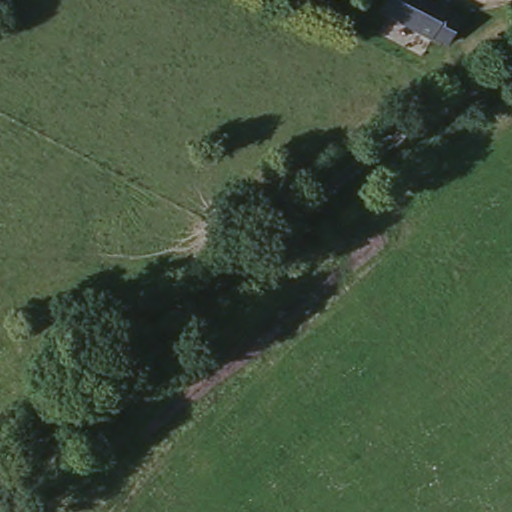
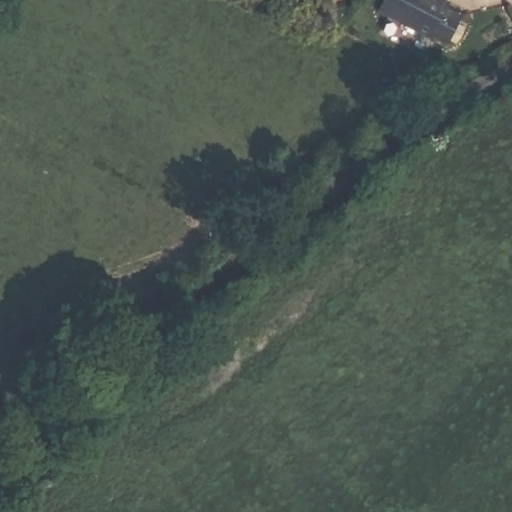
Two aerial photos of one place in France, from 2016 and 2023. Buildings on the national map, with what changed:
unchanged [(461,19),(444,46),(378,8),(383,0),(430,0),(461,19)]

